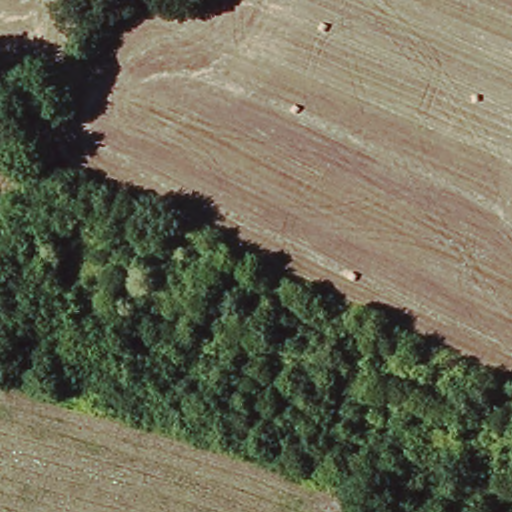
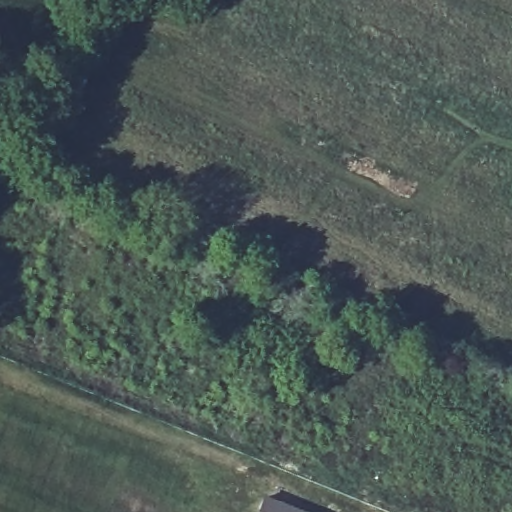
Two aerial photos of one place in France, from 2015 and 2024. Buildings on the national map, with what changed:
new [(302,512),(257,512),(263,497),(302,512)]

